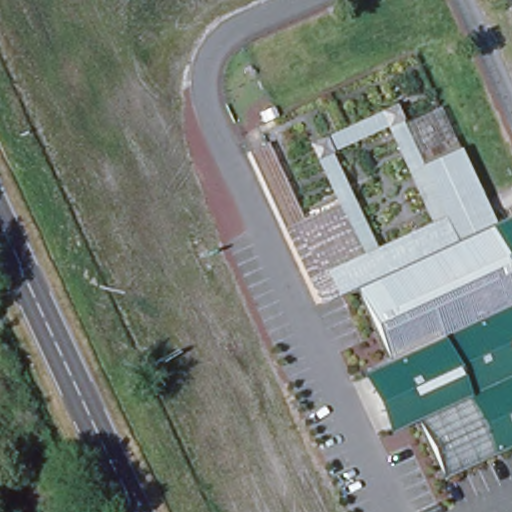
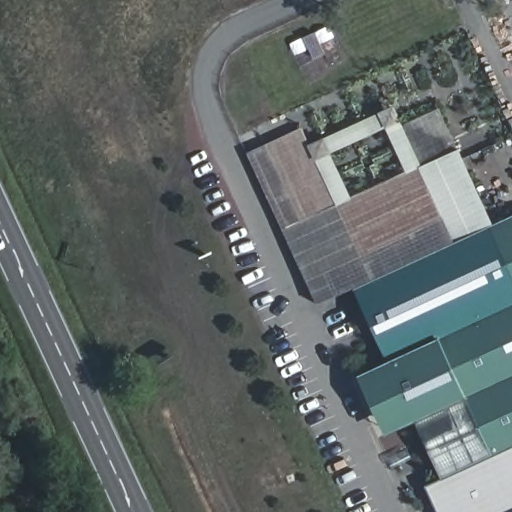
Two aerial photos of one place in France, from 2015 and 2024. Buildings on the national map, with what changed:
unchanged [(305,141),(393,102),(402,122),(438,106),(459,149),(491,223),(512,214),(512,445),(439,479),(413,420),(384,435),(355,373),(384,360),(353,288),(315,305),(299,273),(280,226),(332,202),(305,141)]
unchanged [(293,220),(280,226),(245,149),(265,139),(303,215),(293,220)]
new [(512,445),(512,511),(511,512),(438,512),(426,485),(439,479),(512,445)]

